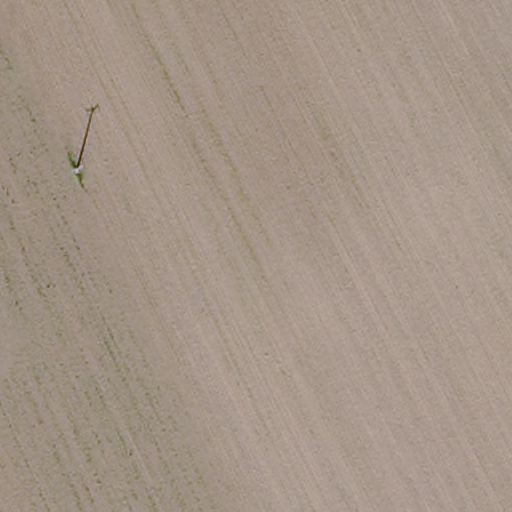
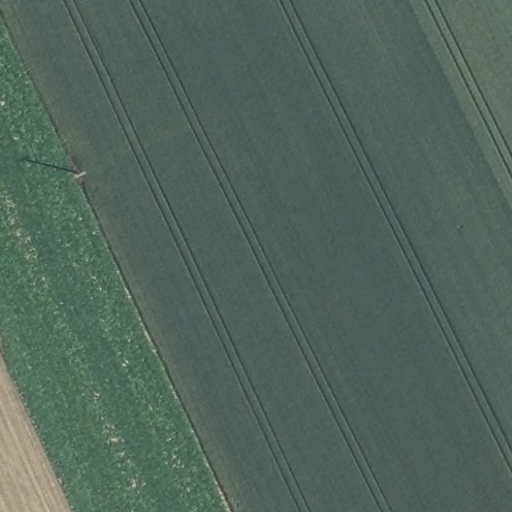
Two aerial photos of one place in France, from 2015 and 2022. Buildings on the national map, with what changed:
[]

